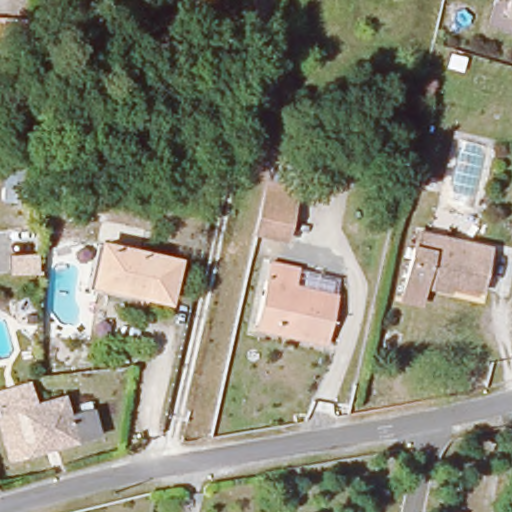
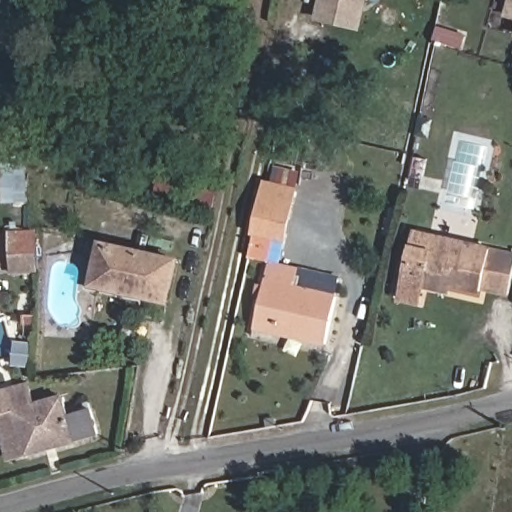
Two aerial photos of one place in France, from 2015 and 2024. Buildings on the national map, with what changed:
new [(315,20),(320,0),(368,0),(361,33),(315,20)]
unchanged [(510,0),(512,0),(512,20),(506,19),(510,0)]
unchanged [(255,228),(265,181),(293,186),(297,187),(285,236),(282,235),(255,228)]
unchanged [(422,303),(408,300),(402,299),(416,234),(422,235),(438,239),(491,252),(483,288),(453,282),(450,292),(426,286),(422,303)]
unchanged [(169,307),(156,303),(94,286),(103,247),(165,264),(177,268),(169,307)]
unchanged [(11,278),(8,255),(40,255),(41,279),(11,278)]
unchanged [(254,329),(269,264),(277,266),(296,270),(290,291),(325,299),(336,301),(323,345),(315,343),(295,339),(262,331),(254,329)]
unchanged [(67,418),(94,412),(99,441),(8,463),(0,423),(0,412),(3,411),(0,399),(0,397),(31,389),(34,404),(61,397),(67,418)]

